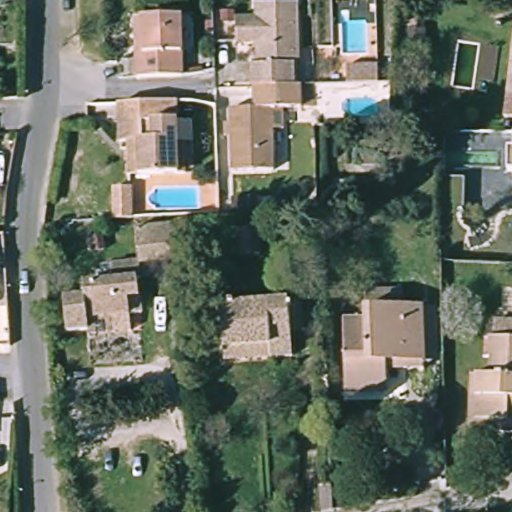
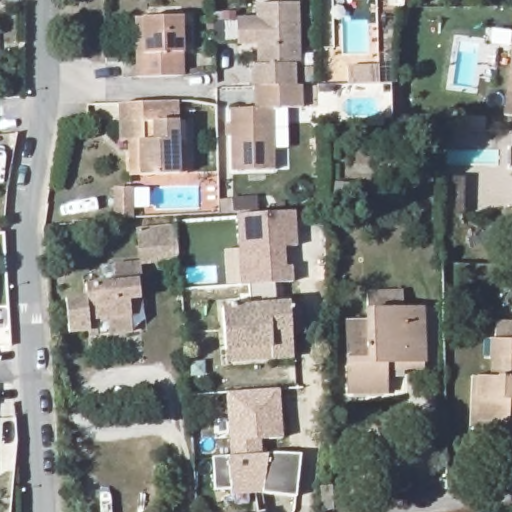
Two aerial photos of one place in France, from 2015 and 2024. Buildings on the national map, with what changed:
unchanged [(250,63),(254,63),(255,40),(232,40),(233,14),(252,14),(252,1),(297,3),(296,63),(292,63),(292,84),(249,84),(250,63)]
unchanged [(140,49),(149,49),(151,12),(183,12),(182,75),(140,76),(140,49)]
unchanged [(509,48),(512,48),(512,109),(503,109),(509,48)]
new [(380,67),(381,85),(350,88),(349,69),(380,67)]
unchanged [(278,149),(278,169),(233,169),(232,106),(249,106),(249,84),(292,84),(319,83),(319,109),(288,109),(288,149),(278,149)]
unchanged [(177,102),(179,176),(142,177),(141,148),(121,148),(120,102),(177,102)]
unchanged [(512,168),(506,169),(505,145),(510,145),(510,129),(510,128),(512,128),(512,168)]
unchanged [(445,214),(444,177),(464,176),(465,213),(445,214)]
new [(294,210),(298,245),(285,247),(286,265),(293,265),(294,282),(242,285),(236,214),(294,210)]
demolished [(252,227),(253,253),(232,252),(232,227),(252,227)]
unchanged [(107,283),(106,265),(134,264),(133,232),(173,229),(177,263),(137,264),(138,284),(134,284),(136,319),(109,319),(110,336),(82,337),(81,332),(61,334),(59,299),(81,298),(80,285),(107,283)]
new [(239,309),(239,305),(252,304),(251,285),(275,283),(275,301),(290,300),(290,307),(276,308),(239,309)]
unchanged [(349,395),(350,383),(347,315),(368,314),(367,292),(404,289),(404,308),(420,307),(423,352),(424,363),(385,365),(385,382),(385,394),(349,395)]
unchanged [(222,357),(218,311),(226,310),(226,303),(239,302),(239,309),(298,307),(299,325),(289,325),(291,361),(269,362),(223,366),(222,357)]
unchanged [(512,420),(479,421),(477,378),(492,378),(490,342),(512,340),(512,420)]
new [(228,456),(230,439),(227,392),(281,388),(283,438),(261,439),(262,454),(228,456)]
new [(228,456),(268,454),(300,454),(295,496),(262,493),(230,496),(230,490),(214,491),(211,457),(228,456)]

